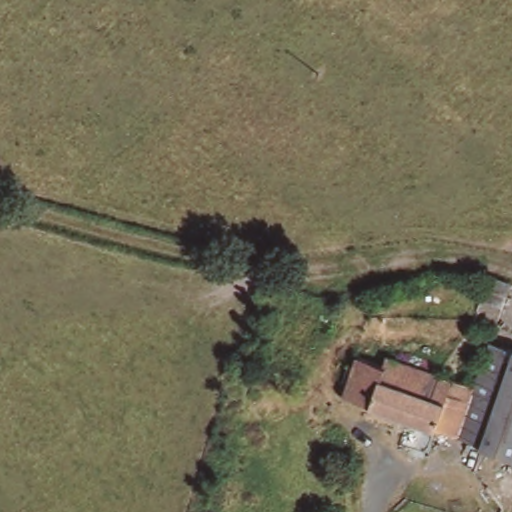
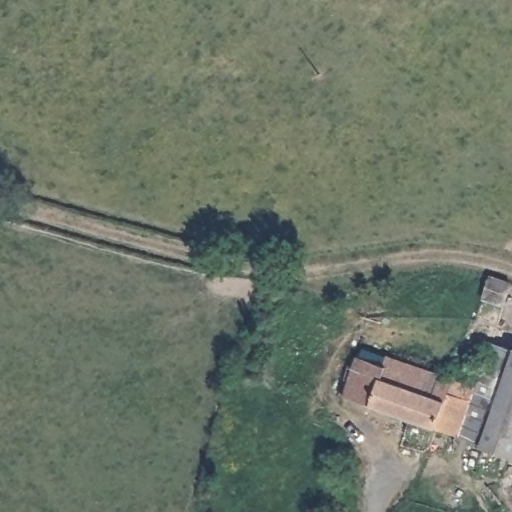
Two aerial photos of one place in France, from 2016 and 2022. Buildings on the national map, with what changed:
unchanged [(489,282),(511,284),(510,303),(489,303),(489,282)]
unchanged [(479,449),(453,439),(469,389),(478,367),(466,362),(475,339),(512,352),(512,461),(479,449)]
unchanged [(366,407),(338,395),(353,357),(381,368),(366,407)]
unchanged [(384,358),(469,389),(453,439),(366,407),(381,368),(384,358)]

